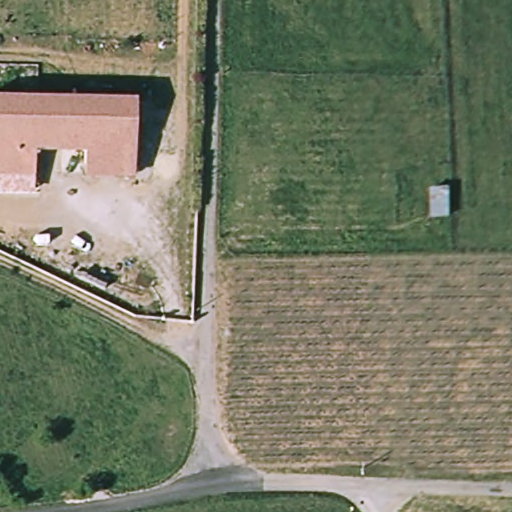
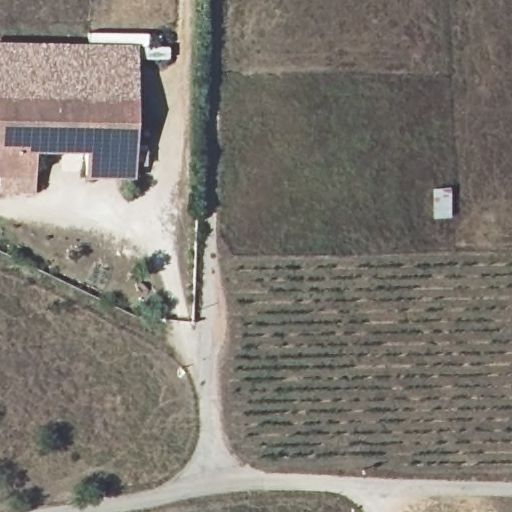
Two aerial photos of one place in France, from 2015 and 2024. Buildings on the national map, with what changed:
new [(136,95),(0,93),(0,41),(136,42),(136,95)]
unchanged [(133,177),(83,177),(85,151),(35,150),(35,175),(0,174),(0,93),(136,95),(133,177)]

